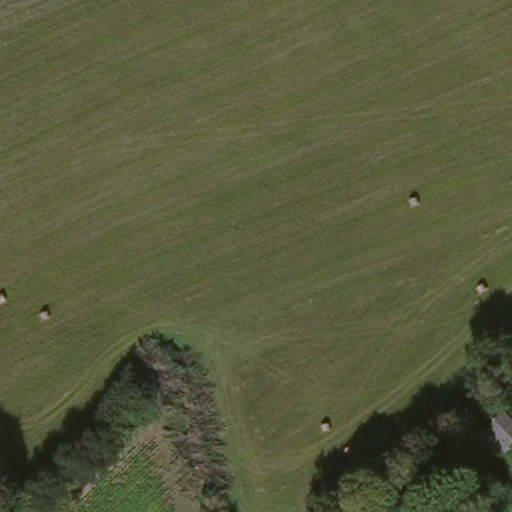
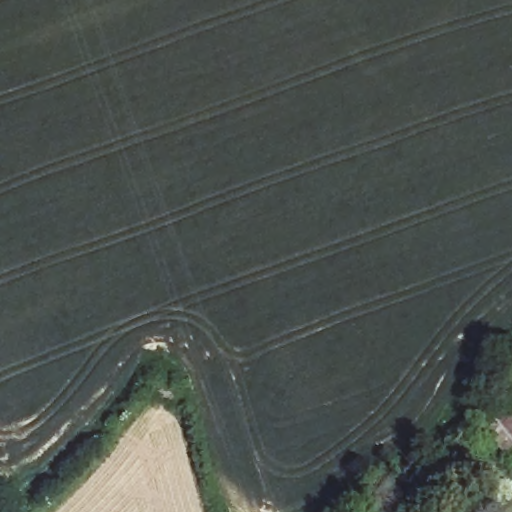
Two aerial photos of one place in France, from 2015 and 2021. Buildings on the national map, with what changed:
unchanged [(512,438),(512,458),(499,469),(475,437),(484,431),(499,420),(512,438)]

